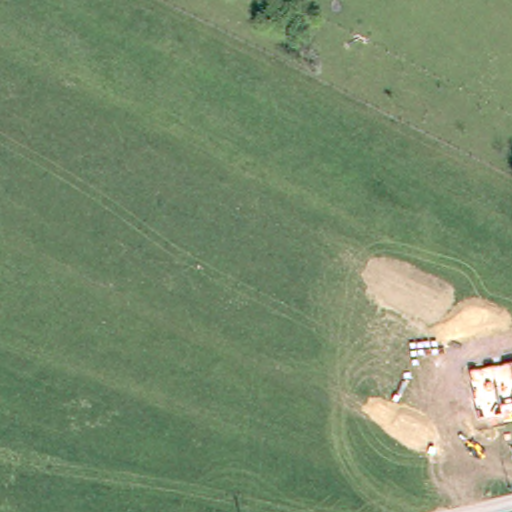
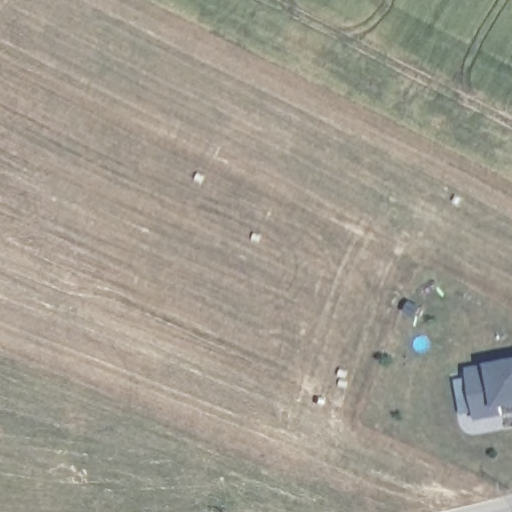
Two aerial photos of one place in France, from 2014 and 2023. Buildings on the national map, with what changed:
new [(504,409),(505,416),(476,420),(467,368),(490,364),(512,360),(512,407),(504,409)]

